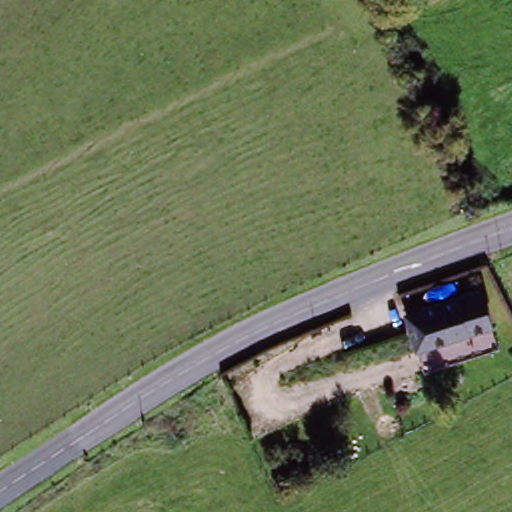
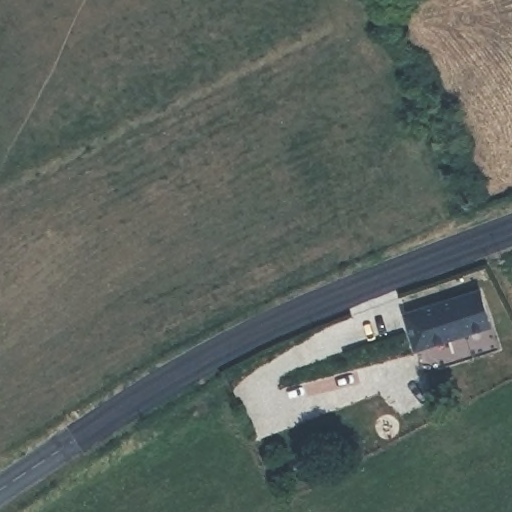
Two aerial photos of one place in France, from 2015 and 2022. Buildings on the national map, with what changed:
unchanged [(476,284),(483,306),(478,307),(409,327),(402,306),(476,284)]
unchanged [(421,364),(409,327),(478,307),(490,341),(421,364)]

